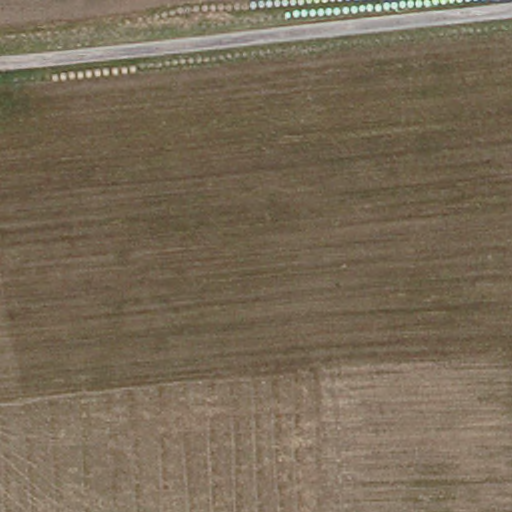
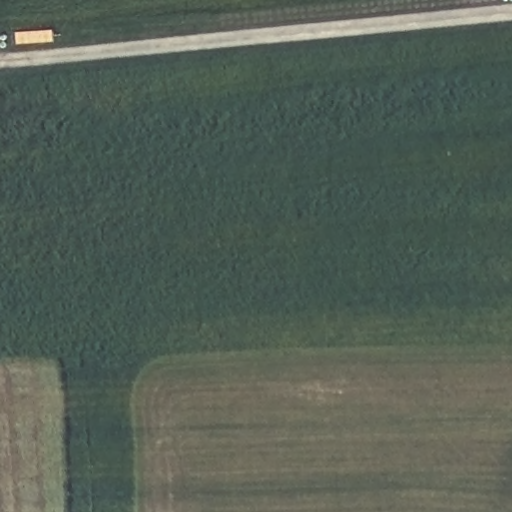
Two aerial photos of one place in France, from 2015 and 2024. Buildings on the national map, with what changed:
[]

